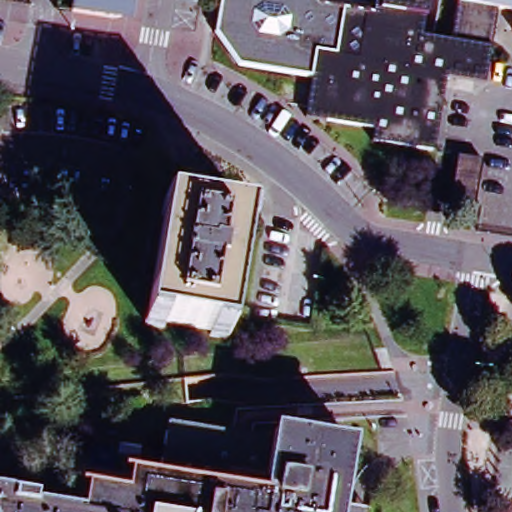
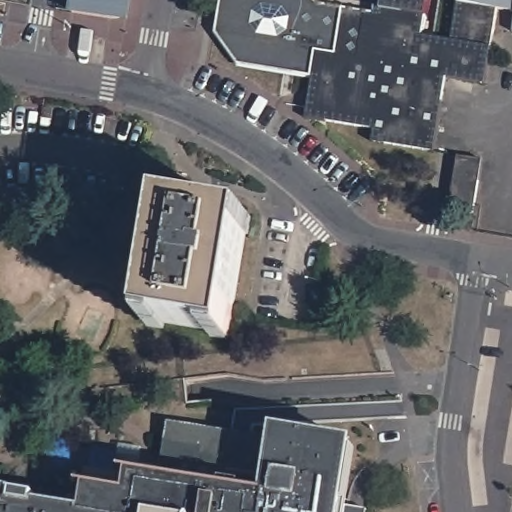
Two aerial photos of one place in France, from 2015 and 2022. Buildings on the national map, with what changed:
unchanged [(130,3),(130,6),(130,8),(128,10),(127,12),(125,13),(124,13),(122,14),(120,15),(118,15),(117,16),(114,16),(112,16),(75,10),(77,0),(131,0),(130,3)]
unchanged [(487,84),(448,78),(437,154),(376,145),(377,132),(307,121),(313,82),(240,71),(215,34),(220,0),(315,0),(318,4),(375,13),(377,0),(427,0),(422,34),(451,38),(456,8),(497,16),(487,84)]
unchanged [(457,0),(512,0),(512,8),(498,6),(497,16),(456,8),(457,0)]
unchanged [(449,192),(455,156),(478,160),(470,215),(465,214),(446,210),(449,192)]
unchanged [(252,215),(232,336),(149,323),(169,201),(252,215)]
unchanged [(120,492),(123,472),(152,477),(161,421),(207,427),(206,437),(232,442),(233,435),(253,438),(252,445),(278,450),(281,432),(352,443),(342,505),(341,512),(76,512),(80,486),(120,492)]
unchanged [(4,494),(5,490),(30,494),(28,506),(70,512),(0,512),(0,493),(4,494)]
unchanged [(369,512),(341,512),(342,505),(370,510),(369,512)]

